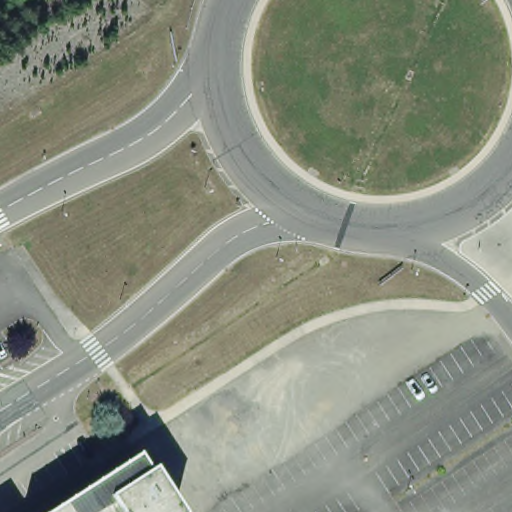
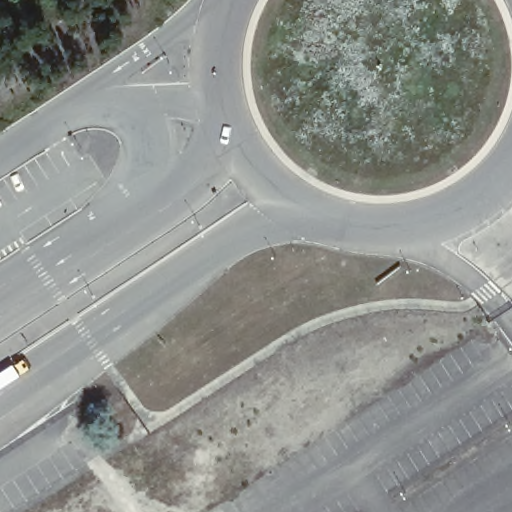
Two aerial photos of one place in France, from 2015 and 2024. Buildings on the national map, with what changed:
demolished [(142,478),(150,474),(170,506),(160,512),(50,512),(130,461),(142,478)]
demolished [(173,512),(160,512),(170,506),(173,512)]

